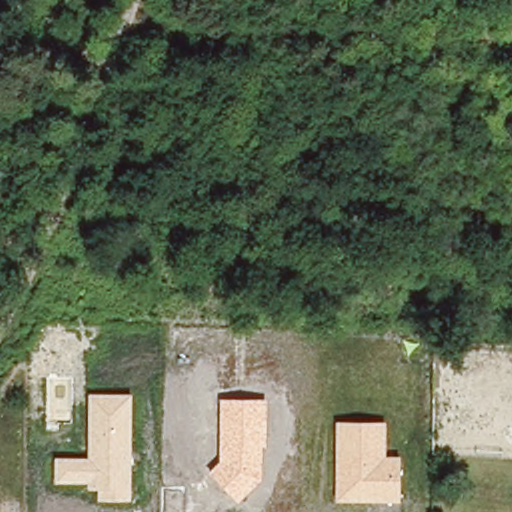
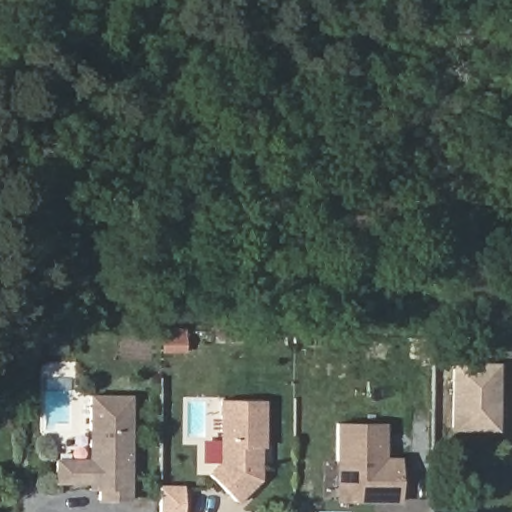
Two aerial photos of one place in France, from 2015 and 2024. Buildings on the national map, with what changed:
new [(189,330),(188,351),(163,351),(163,330),(189,330)]
new [(498,431),(452,430),(453,362),(500,362),(498,431)]
unchanged [(97,501),(98,490),(89,491),(88,485),(57,485),(57,458),(90,458),(91,396),(133,395),(132,501),(97,501)]
unchanged [(210,473),(221,462),(220,400),(267,399),(267,448),(264,449),(262,480),(240,501),(210,473)]
unchanged [(337,501),(339,423),(386,422),(386,457),(400,457),(401,501),(337,501)]
new [(161,486),(184,486),(184,512),(161,512),(161,486)]

